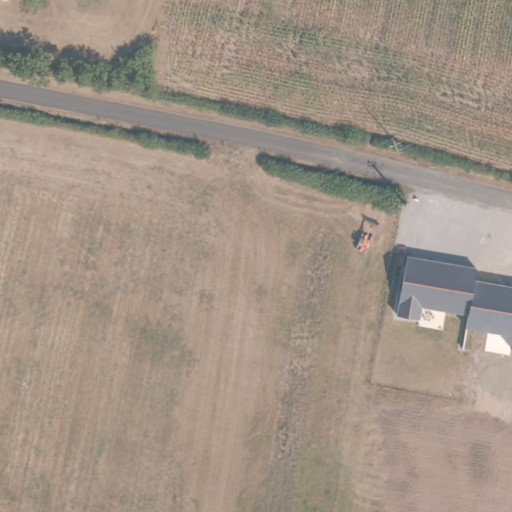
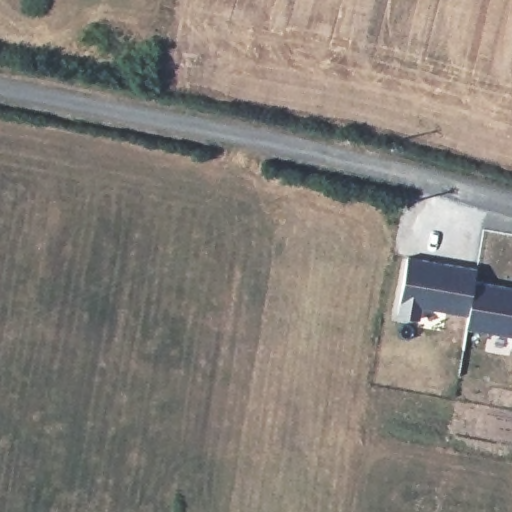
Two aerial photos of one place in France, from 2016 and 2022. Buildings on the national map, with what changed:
unchanged [(511,336),(464,327),(467,313),(421,306),(419,318),(395,314),(405,255),(475,268),(471,281),(512,287),(512,348),(508,348),(511,336)]

